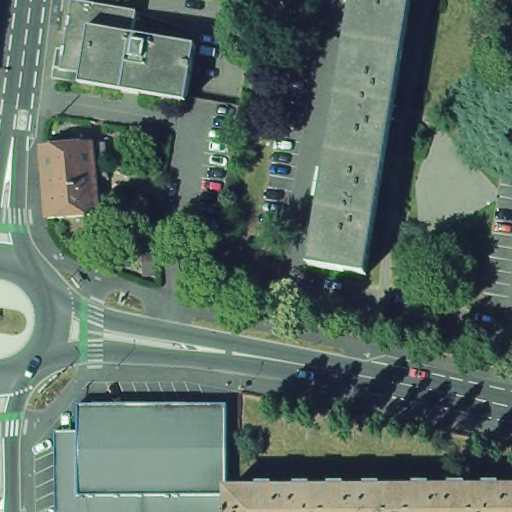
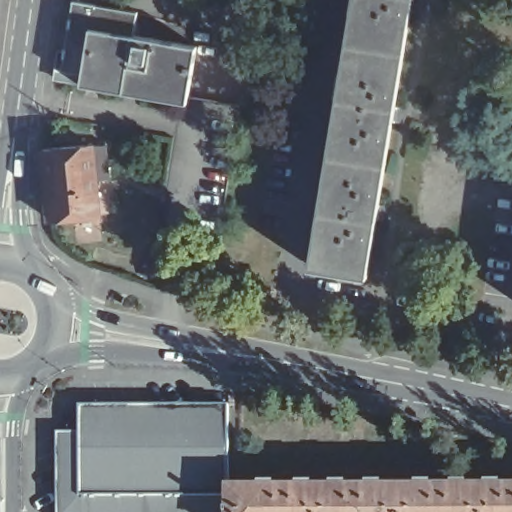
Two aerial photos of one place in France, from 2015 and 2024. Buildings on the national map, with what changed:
unchanged [(60,69),(64,44),(65,44),(72,0),(81,0),(96,3),(95,3),(136,9),(138,9),(134,34),(196,44),(189,94),(184,94),(122,84),(123,79),(81,72),(80,82),(58,79),(60,69)]
unchanged [(414,0),(410,26),(391,139),(375,236),(369,276),(312,267),(356,0),(414,0)]
unchanged [(89,146),(103,145),(105,180),(92,181),(95,216),(45,220),(40,149),(89,145),(89,146)]
unchanged [(230,512),(58,512),(58,437),(80,437),(80,404),(82,404),(82,406),(110,406),(110,404),(111,404),(111,406),(139,406),(140,404),(141,404),(141,406),(169,406),(169,404),(171,404),(171,406),(199,406),(199,404),(230,404),(230,411),(230,484),(230,489),(230,512)]
unchanged [(230,489),(316,489),(316,512),(230,512),(230,489)]
unchanged [(316,489),(401,489),(401,512),(316,512),(316,489)]
unchanged [(401,489),(486,489),(486,512),(401,512),(401,489)]
unchanged [(486,489),(512,489),(512,512),(486,512),(486,489)]

